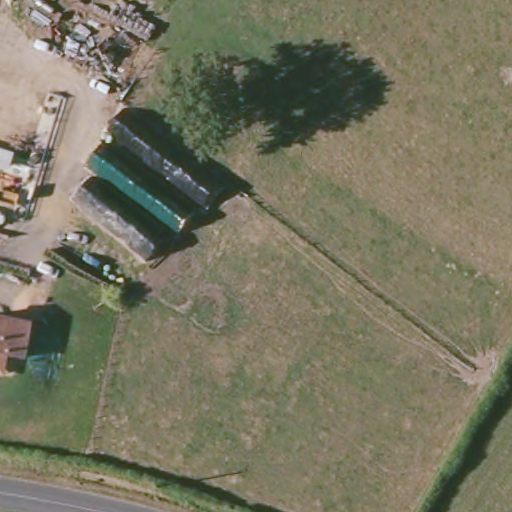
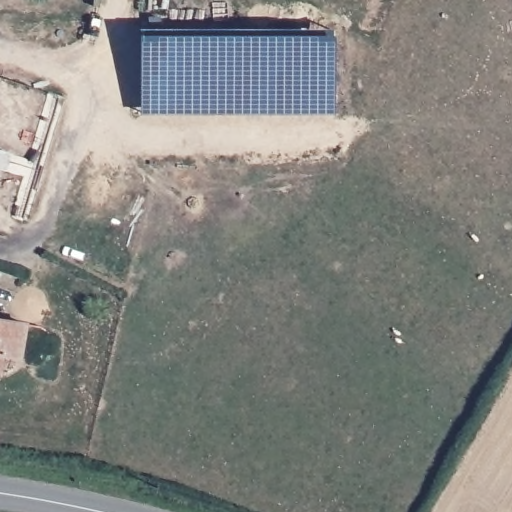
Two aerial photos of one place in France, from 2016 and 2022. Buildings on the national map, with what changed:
new [(334,29),(335,36),(334,113),(141,111),(142,37),(142,31),(334,29)]
unchanged [(0,318),(31,325),(26,359),(8,357),(6,362),(3,375),(0,374),(0,318)]

